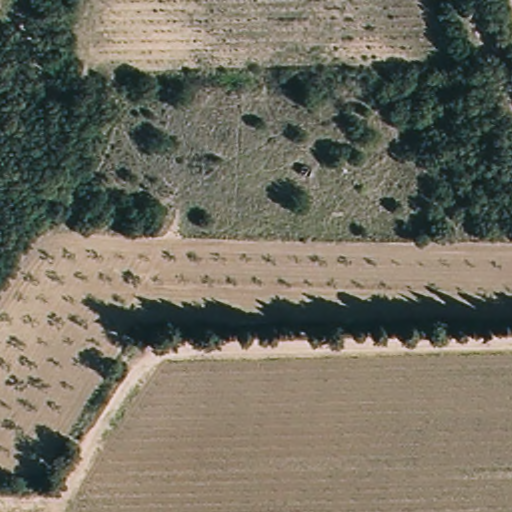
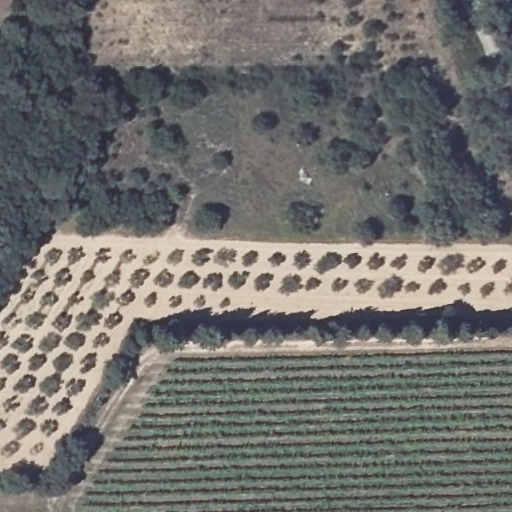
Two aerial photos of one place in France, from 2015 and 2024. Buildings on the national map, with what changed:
[]

